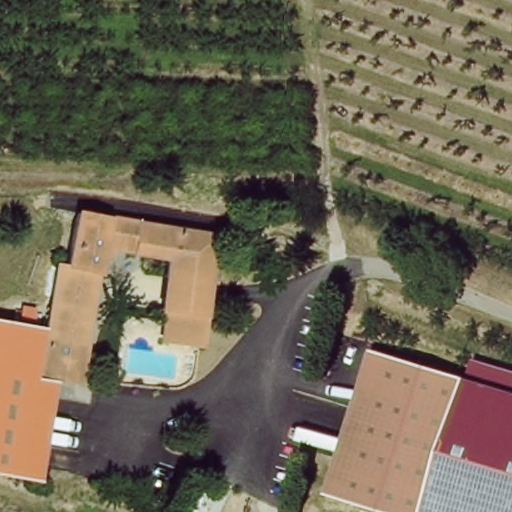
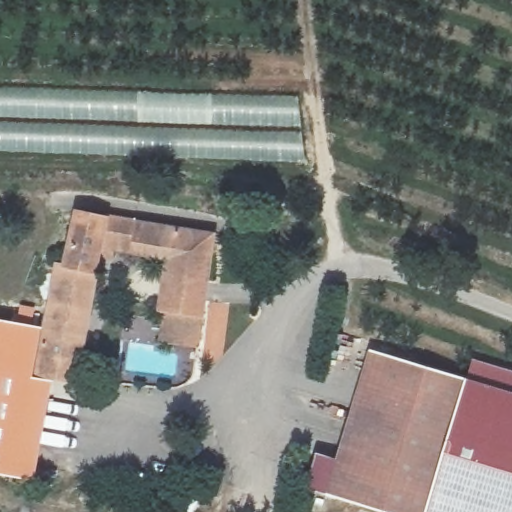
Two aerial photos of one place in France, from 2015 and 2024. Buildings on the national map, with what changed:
new [(303,96),(308,161),(0,155),(0,87),(303,96)]
unchanged [(170,376),(179,315),(167,312),(175,257),(109,245),(102,273),(103,297),(83,385),(45,373),(51,352),(51,350),(70,263),(77,263),(79,251),(86,212),(219,236),(200,381),(198,380),(170,376)]
unchanged [(0,470),(0,316),(43,324),(35,383),(57,389),(43,477),(0,470)]
unchanged [(477,387),(439,512),(380,512),(331,496),(373,352),(465,382),(477,387)]
unchanged [(465,382),(470,362),(512,374),(512,512),(439,512),(477,387),(465,382)]
demolished [(153,376),(168,377),(167,390),(153,387),(153,376)]

